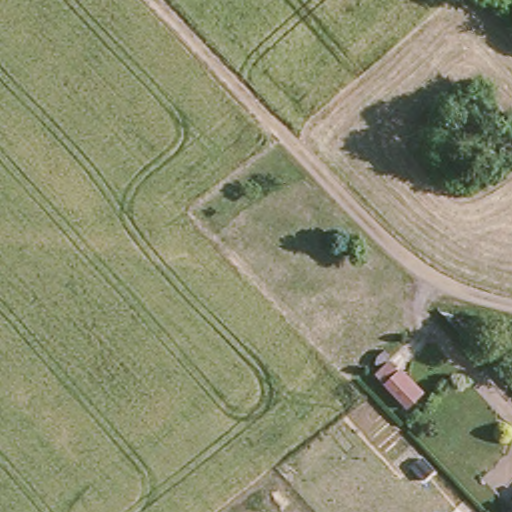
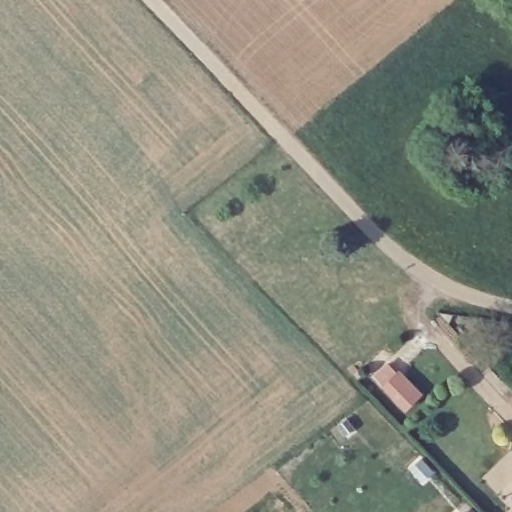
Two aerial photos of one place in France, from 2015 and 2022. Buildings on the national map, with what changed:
unchanged [(387,362),(422,392),(407,407),(375,374),(387,362)]
unchanged [(512,509),(512,510),(511,509),(512,509)]

